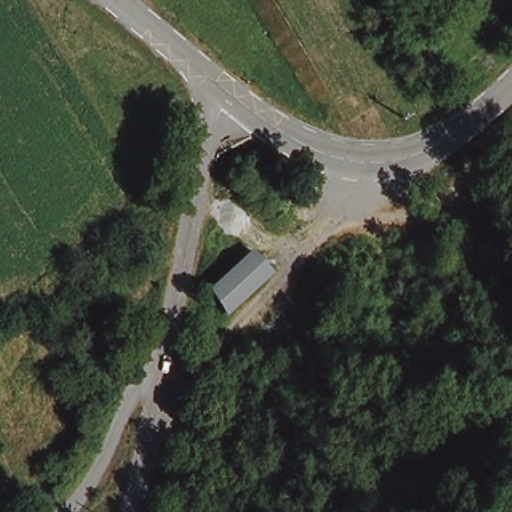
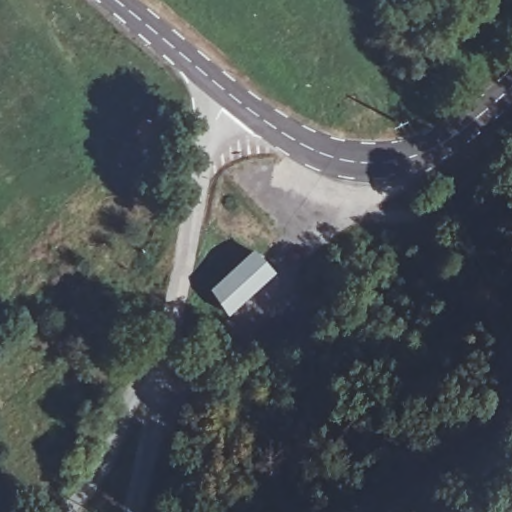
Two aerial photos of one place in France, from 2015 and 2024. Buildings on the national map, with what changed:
unchanged [(212,290),(212,289),(252,249),(270,268),(226,310),(212,290)]

